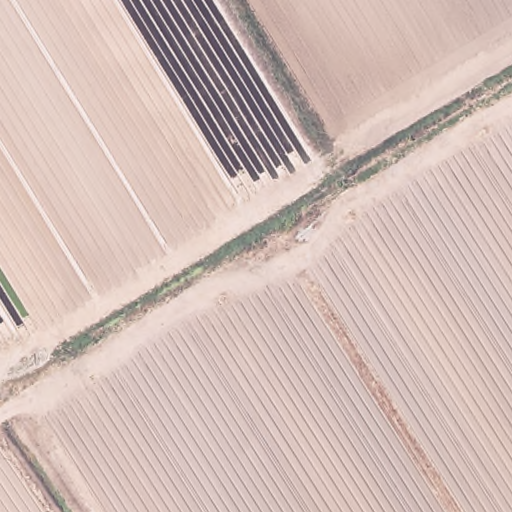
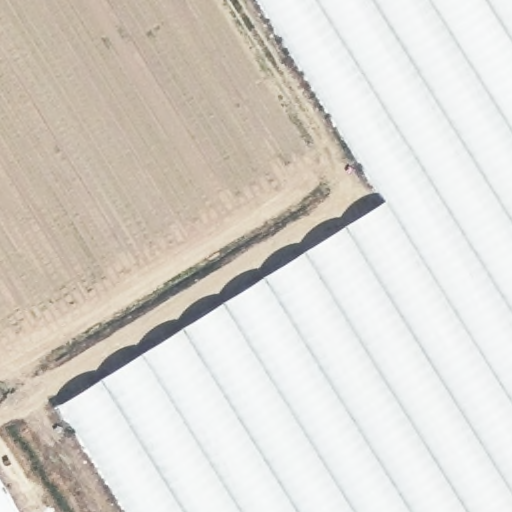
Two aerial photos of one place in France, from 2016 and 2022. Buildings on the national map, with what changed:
new [(261,0),(512,0),(512,512),(131,512),(61,401),(385,199),(261,0)]
new [(0,512),(0,485),(16,512),(0,512)]

